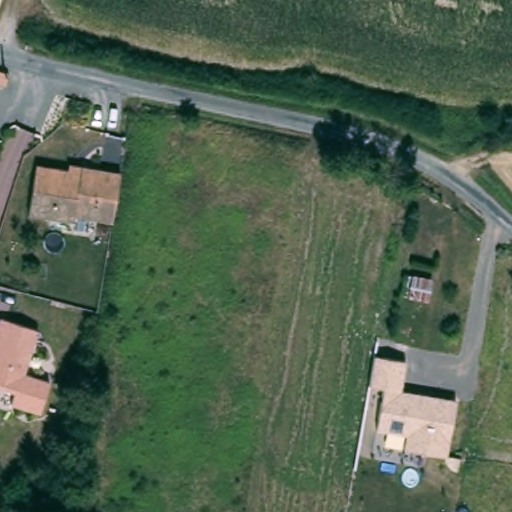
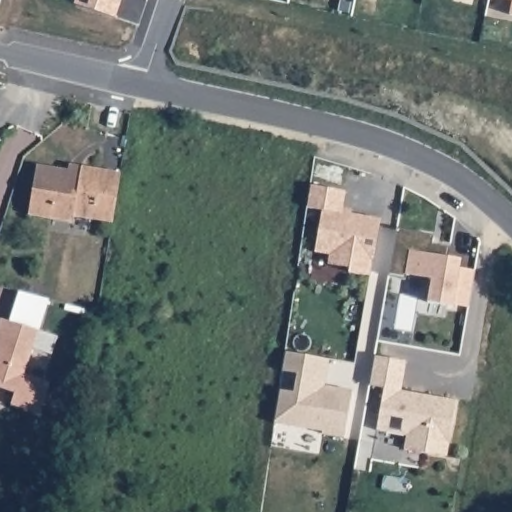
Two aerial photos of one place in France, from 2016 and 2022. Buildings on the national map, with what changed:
new [(76,0),(116,0),(115,0),(120,2),(115,17),(74,3),(76,0)]
new [(510,14),(512,4),(512,14),(510,14)]
unchanged [(72,212),(71,219),(26,211),(35,161),(66,167),(67,161),(79,164),(119,170),(110,219),(72,212)]
new [(346,191),(343,208),(352,210),(351,213),(380,218),(370,275),(349,271),(349,268),(328,265),(330,254),(315,251),(322,210),(306,207),(310,185),(346,191)]
new [(409,251),(460,258),(460,267),(474,271),(469,305),(453,304),(428,301),(432,277),(405,275),(409,251)]
demolished [(408,272),(437,279),(431,304),(402,298),(408,272)]
unchanged [(39,388),(28,418),(0,408),(0,406),(4,396),(0,395),(0,320),(34,332),(16,380),(39,388)]
new [(279,390),(294,392),(297,373),(282,370),(285,351),(329,360),(324,385),(352,390),(345,437),(322,432),(323,430),(274,422),(279,390)]
unchanged [(406,446),(407,434),(379,430),(384,386),(369,385),(374,356),(408,361),(403,390),(457,397),(448,455),(406,446)]

